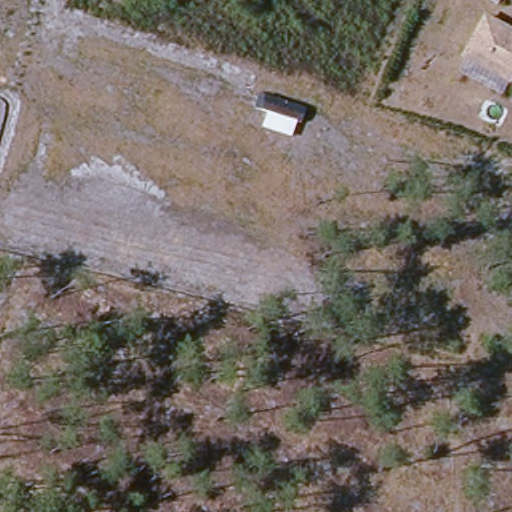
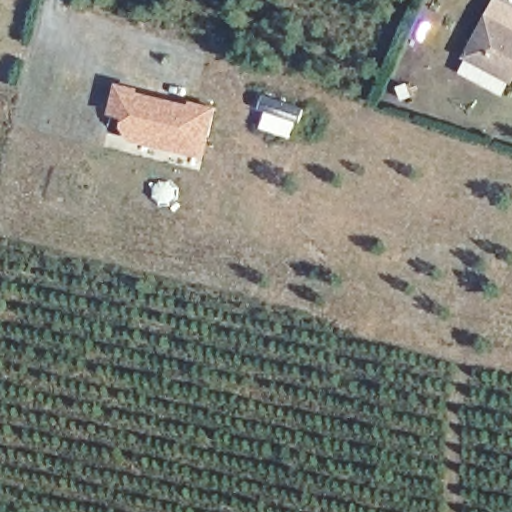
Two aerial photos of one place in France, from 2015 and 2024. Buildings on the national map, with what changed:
unchanged [(512,72),(506,83),(461,59),(481,21),(512,37),(512,72)]
new [(141,89),(140,92),(191,104),(191,101),(217,108),(206,159),(130,141),(122,126),(123,118),(109,115),(116,83),(141,89)]

